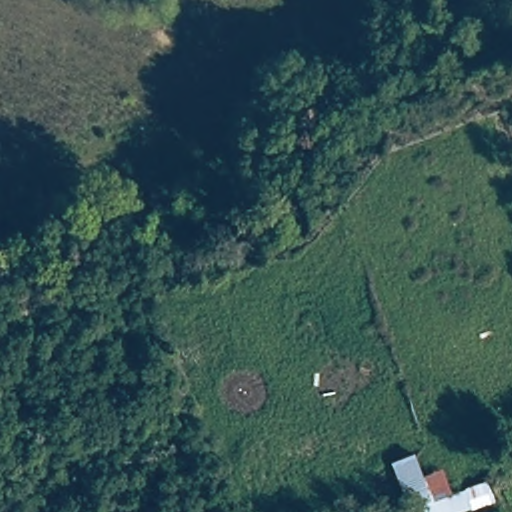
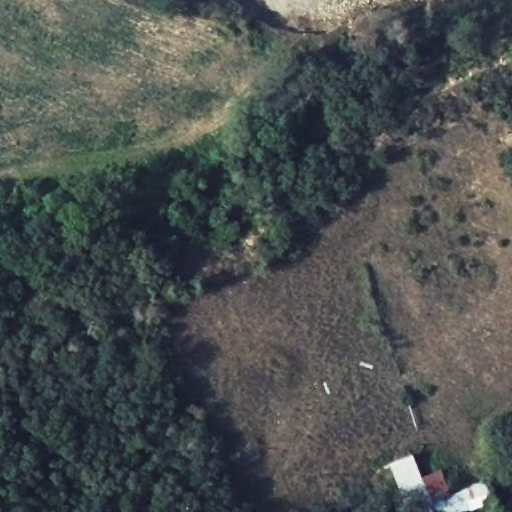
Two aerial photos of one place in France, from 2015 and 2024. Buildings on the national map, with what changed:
unchanged [(393,512),(401,509),(385,465),(413,452),(420,472),(441,468),(453,492),(485,480),(493,507),(478,512),(393,512)]

